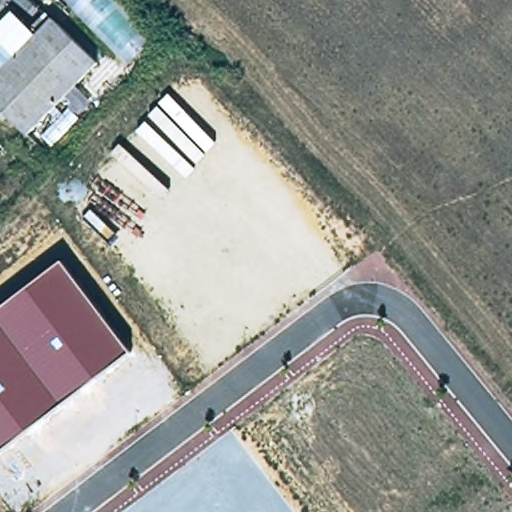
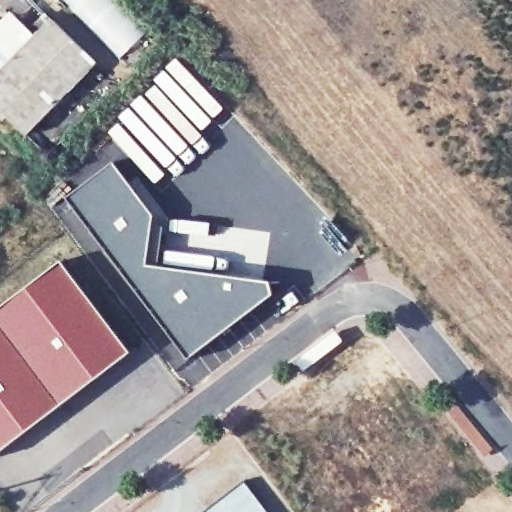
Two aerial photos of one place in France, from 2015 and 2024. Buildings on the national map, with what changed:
unchanged [(98,64),(35,127),(57,148),(47,157),(0,111),(0,74),(53,20),(98,64)]
new [(114,160),(158,215),(157,224),(150,262),(159,263),(272,280),(275,296),(188,361),(77,219),(73,222),(86,241),(81,245),(52,207),(114,160)]
unchanged [(132,353),(0,452),(0,308),(63,260),(132,353)]
new [(268,512),(204,512),(245,481),(268,512)]

